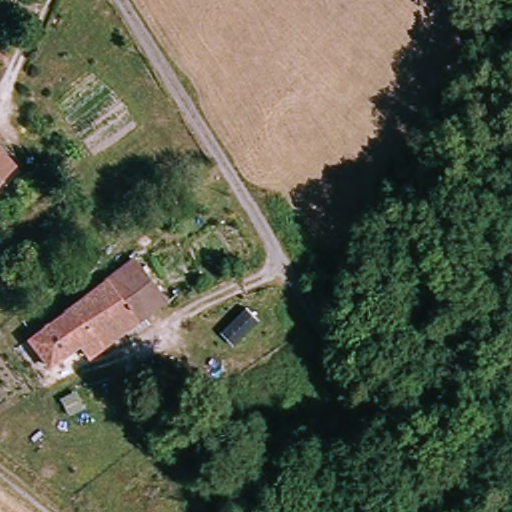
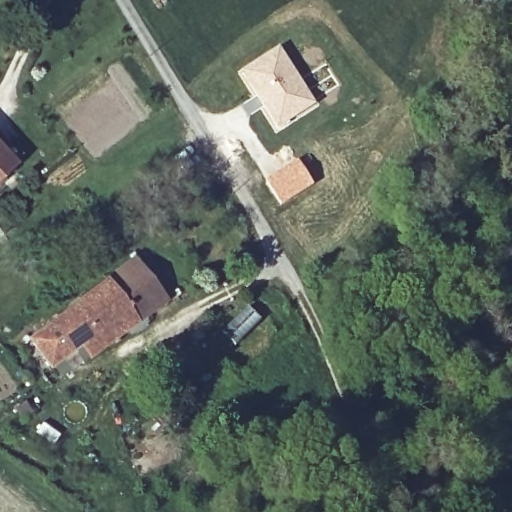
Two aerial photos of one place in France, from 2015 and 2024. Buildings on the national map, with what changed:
new [(280,46),(318,105),(277,131),(239,71),(280,46)]
unchanged [(0,151),(19,172),(0,188),(0,151)]
new [(297,159),(314,185),(281,206),(264,180),(297,159)]
unchanged [(91,255),(108,278),(66,309),(50,287),(91,255)]
unchanged [(85,355),(76,342),(46,364),(27,337),(66,309),(108,278),(137,257),(165,297),(155,305),(85,355)]

